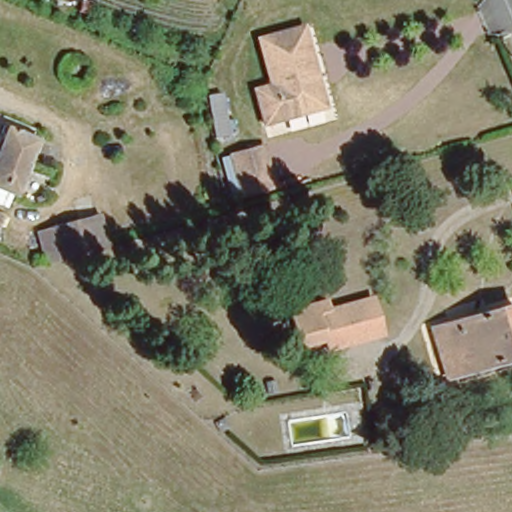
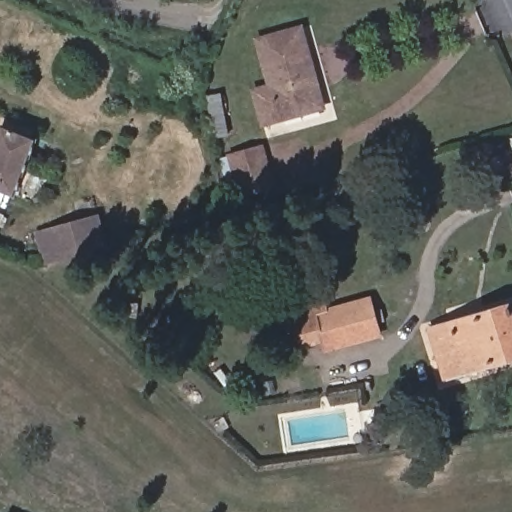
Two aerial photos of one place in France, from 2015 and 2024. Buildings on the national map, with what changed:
unchanged [(308,50),(304,53),(310,80),(316,78),(323,106),(261,121),(252,88),(268,83),(257,43),(256,38),(302,25),(305,36),(308,50)]
unchanged [(0,192),(0,153),(9,130),(43,142),(19,198),(0,192)]
unchanged [(224,157),(234,154),(267,145),(277,183),(243,191),(233,194),(224,157)]
unchanged [(47,231),(45,225),(97,212),(105,247),(55,259),(45,262),(37,232),(47,231)]
unchanged [(321,312),(368,300),(380,339),(327,354),(323,341),(291,349),(281,311),(319,301),(321,312)]
unchanged [(445,327),(463,322),(461,313),(483,307),(486,316),(512,309),(512,359),(460,372),(442,378),(428,332),(445,327)]

